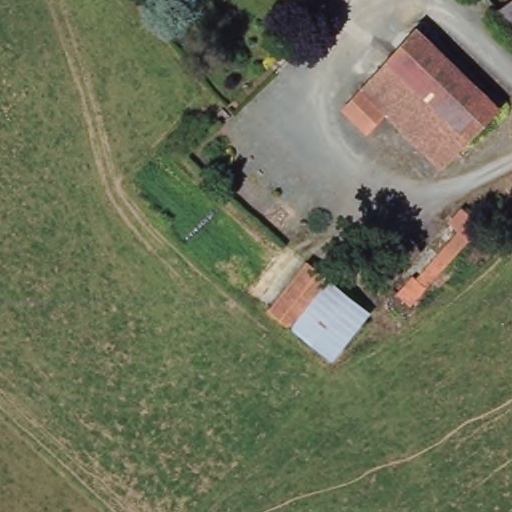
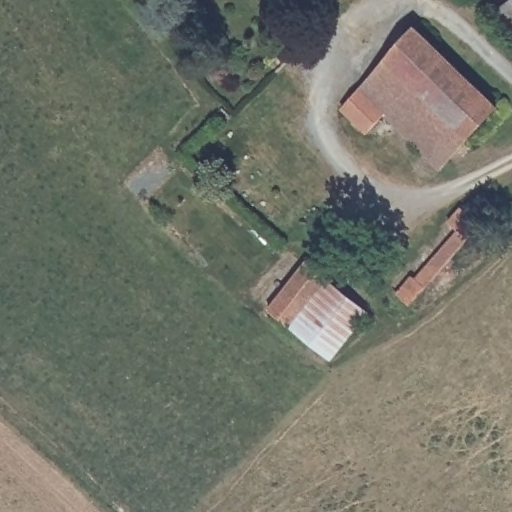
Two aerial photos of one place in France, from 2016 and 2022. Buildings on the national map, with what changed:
unchanged [(512,0),(512,22),(500,10),(510,0),(512,0)]
unchanged [(512,85),(512,95),(436,172),(380,116),(362,135),(338,110),(439,11),(512,85)]
unchanged [(420,257),(424,260),(444,240),(438,234),(462,211),(480,231),(419,291),(403,274),(420,257)]
unchanged [(286,261),(316,279),(285,328),(255,311),(286,261)]
unchanged [(285,328),(316,279),(336,290),(306,340),(285,328)]
unchanged [(345,361),(306,340),(336,290),(381,316),(352,359),(349,364),(345,361)]

